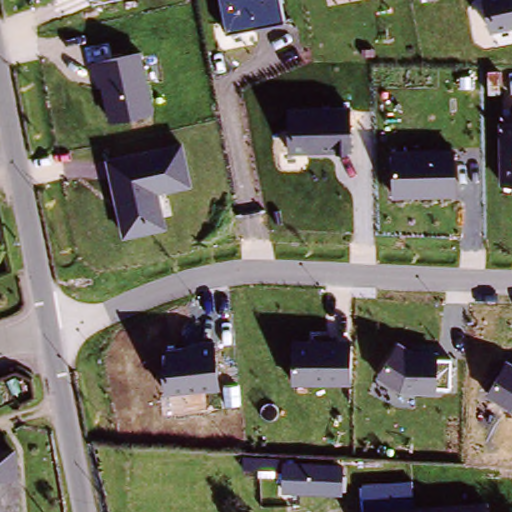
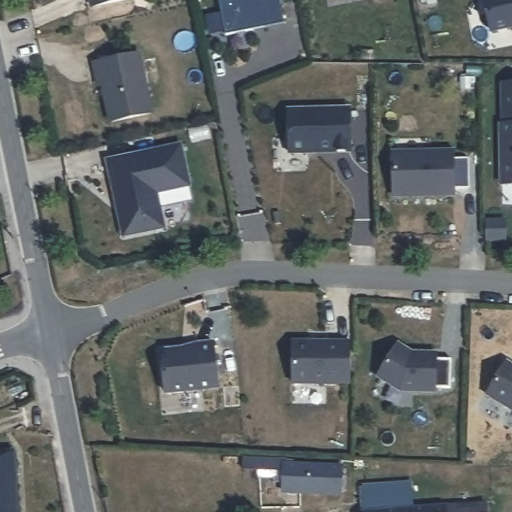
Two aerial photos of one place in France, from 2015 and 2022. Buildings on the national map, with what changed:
unchanged [(226,34),(219,0),(280,0),(285,22),(226,34)]
unchanged [(485,0),(512,0),(512,27),(490,31),(485,0)]
unchanged [(140,53),(152,114),(112,120),(99,59),(140,53)]
unchanged [(350,105),(350,151),(290,151),(290,105),(350,105)]
unchanged [(512,183),(500,182),(500,124),(512,124),(512,183)]
unchanged [(183,142),(191,185),(160,191),(168,227),(122,236),(106,159),(183,142)]
unchanged [(455,147),(455,196),(392,192),(393,147),(455,147)]
unchanged [(348,338),(348,382),(294,381),(293,337),(348,338)]
unchanged [(218,387),(164,391),(160,347),(216,342),(218,387)]
unchanged [(411,352),(435,353),(435,357),(450,357),(447,387),(436,387),(436,394),(401,391),(379,375),(400,342),(411,352)]
unchanged [(512,411),(490,395),(508,361),(512,364),(512,411)]
unchanged [(7,452),(11,512),(0,512),(0,452),(7,452)]
unchanged [(278,496),(282,475),(340,478),(338,499),(329,498),(278,496)]
unchanged [(358,486),(392,484),(392,512),(360,512),(358,486)]
unchanged [(482,510),(482,512),(459,512),(482,510)]

